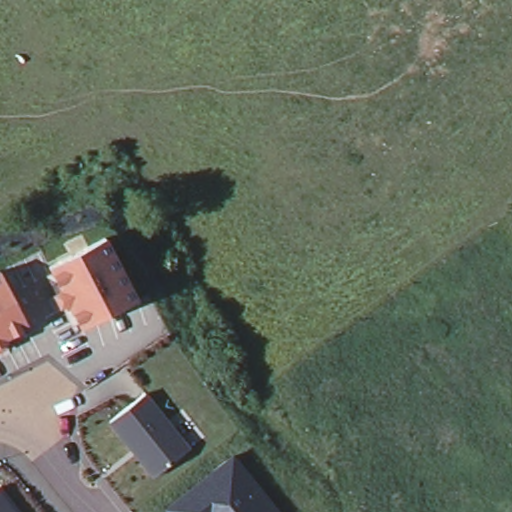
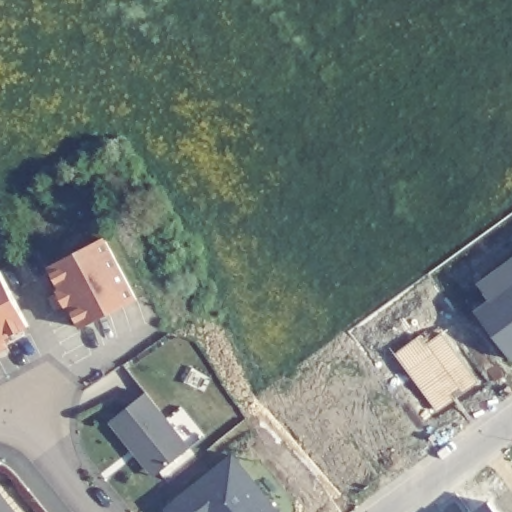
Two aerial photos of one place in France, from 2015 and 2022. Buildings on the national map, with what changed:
unchanged [(54,293),(59,291),(58,290),(61,288),(49,265),(104,235),(137,298),(81,327),(69,303),(66,305),(65,303),(61,306),(54,293)]
new [(475,286),(512,258),(512,364),(511,365),(474,311),(485,300),(475,286)]
unchanged [(0,349),(0,271),(28,325),(5,336),(7,340),(5,340),(7,345),(0,349)]
new [(424,332),(429,343),(445,331),(487,385),(436,417),(394,355),(424,332)]
unchanged [(130,445),(110,420),(145,392),(167,420),(189,447),(159,471),(154,475),(130,445)]
unchanged [(234,455),(280,512),(208,512),(190,490),(234,455)]
unchanged [(190,490),(208,512),(169,512),(167,508),(190,490)]
unchanged [(15,512),(0,512),(0,493),(15,512)]
new [(491,512),(475,512),(485,505),(491,512)]

